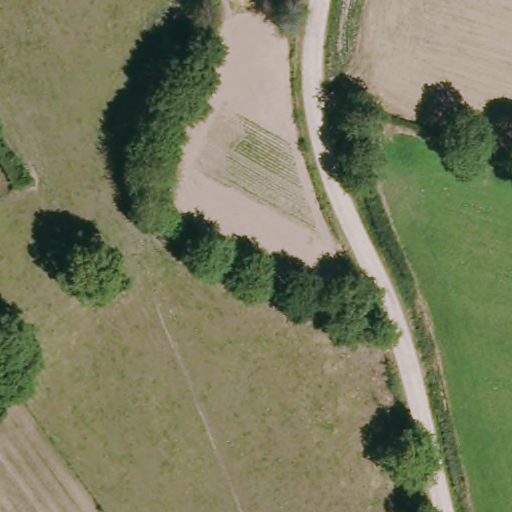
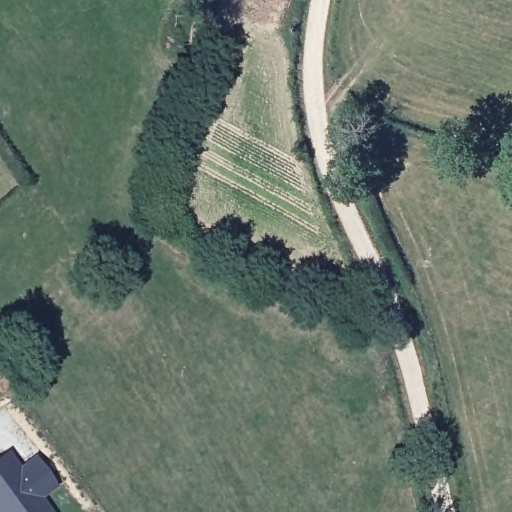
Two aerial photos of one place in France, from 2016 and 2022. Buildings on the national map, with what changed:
new [(9,452),(20,467),(35,456),(60,486),(42,500),(50,512),(0,512),(0,459),(9,452)]

